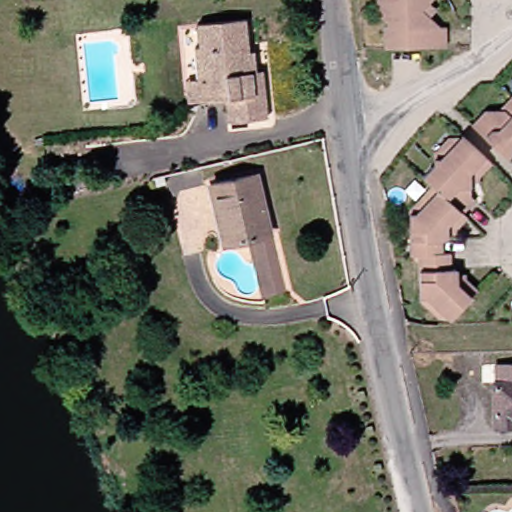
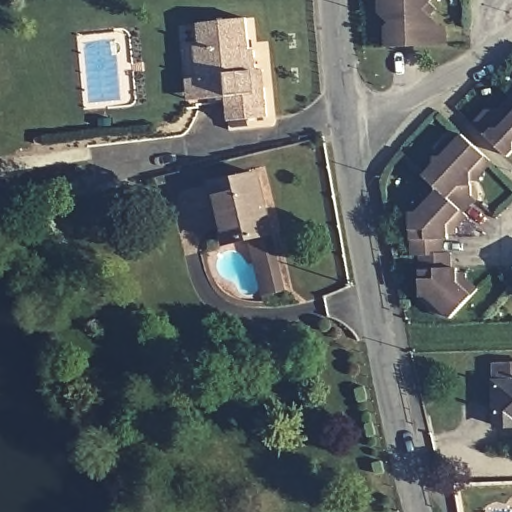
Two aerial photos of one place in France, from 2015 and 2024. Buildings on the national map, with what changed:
unchanged [(441,8),(434,15),(445,26),(449,26),(449,45),(384,44),(384,23),(388,20),(377,6),(376,0),(431,0),(441,8)]
unchanged [(193,53),(199,52),(196,28),(244,23),(247,45),(255,44),(259,75),(264,75),(265,92),(268,121),(227,125),(224,101),(202,103),(187,105),(184,85),(196,83),(193,53)]
unchanged [(481,117),(485,111),(486,107),(501,107),(512,96),(512,152),(509,155),(474,122),(481,117)]
unchanged [(494,166),(483,177),(483,187),(473,187),(472,194),(475,200),(480,205),(468,219),(472,222),(452,243),(444,244),(445,256),(456,255),(457,267),(480,290),(454,321),(440,320),(419,298),(418,270),(422,270),(421,258),(411,258),(411,217),(437,191),(425,178),(431,174),(435,167),(436,159),(435,158),(443,158),(463,137),(494,166)]
unchanged [(250,238),(224,244),(210,184),(258,174),(270,234),(250,238)]
unchanged [(284,294),(264,298),(250,238),(270,234),(284,294)]
unchanged [(499,426),(496,367),(512,367),(512,426),(499,426)]

